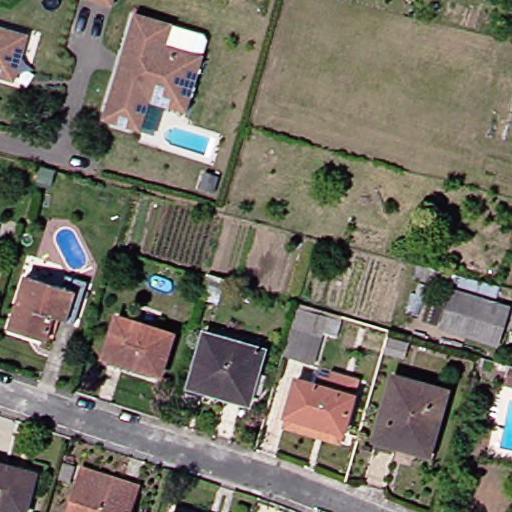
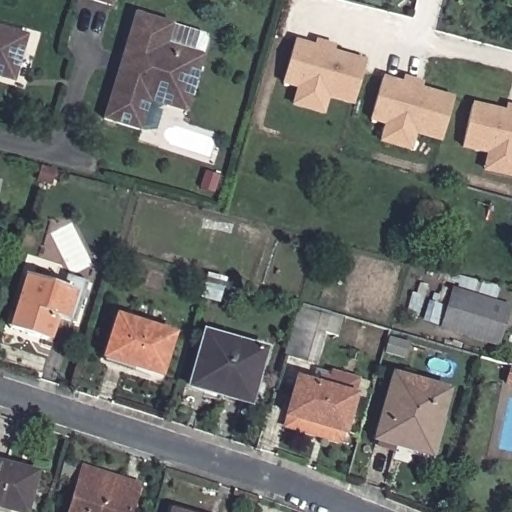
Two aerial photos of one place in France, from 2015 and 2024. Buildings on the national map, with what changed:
unchanged [(94,0),(112,0),(111,4),(94,0)]
unchanged [(153,103),(152,106),(145,133),(107,123),(114,96),(120,76),(124,59),(135,16),(173,25),(168,45),(205,55),(194,98),(190,112),(153,103)]
unchanged [(12,81),(0,77),(0,30),(26,38),(18,64),(17,65),(12,81)]
new [(316,45),(317,40),(337,45),(335,52),(367,61),(355,103),(284,81),(296,40),(316,45)]
new [(373,118),(386,77),(405,82),(407,76),(426,82),(424,88),(457,98),(444,139),(418,131),(413,145),(385,137),(389,123),(373,118)]
new [(475,101),(507,110),(508,103),(512,104),(512,173),(488,167),(492,150),(465,143),(475,101)]
unchanged [(83,322),(61,316),(54,339),(18,328),(34,274),(71,286),(75,274),(95,280),(83,322)]
unchanged [(509,305),(498,345),(463,335),(474,294),(509,305)]
unchanged [(469,304),(463,327),(446,323),(453,300),(469,304)]
unchanged [(106,362),(109,353),(119,315),(176,333),(164,372),(137,365),(135,371),(106,362)]
unchanged [(329,327),(321,352),(293,343),(300,319),(329,327)]
unchanged [(250,400),(193,384),(208,331),(265,348),(250,400)]
unchanged [(381,447),(384,439),(402,376),(455,392),(439,447),(437,455),(407,446),(404,454),(381,447)]
unchanged [(291,427),(294,416),(305,377),(361,394),(350,433),(347,444),(291,427)]
unchanged [(27,512),(16,512),(0,507),(0,459),(9,461),(8,466),(37,474),(27,512)]
unchanged [(121,486),(138,491),(132,512),(71,512),(82,473),(102,479),(121,486)]

